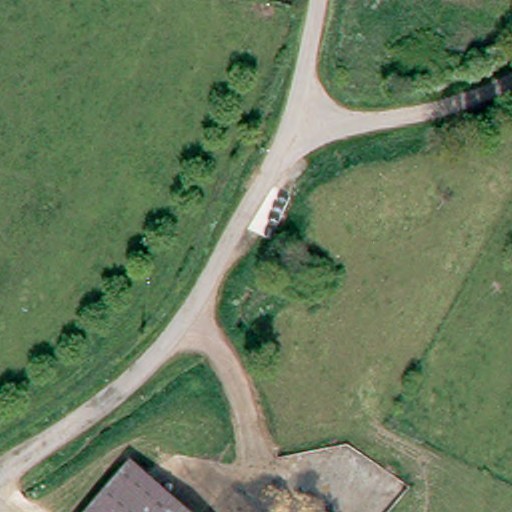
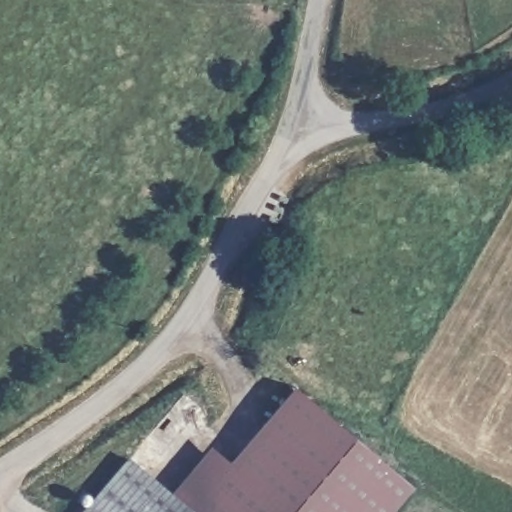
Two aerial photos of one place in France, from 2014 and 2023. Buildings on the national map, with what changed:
new [(210,447),(228,461),(293,386),(412,485),(389,512),(196,512),(172,491),(210,447)]
unchanged [(196,512),(75,512),(128,452),(196,512)]

